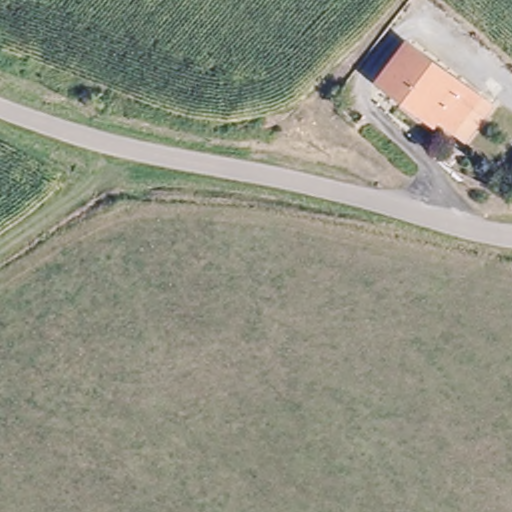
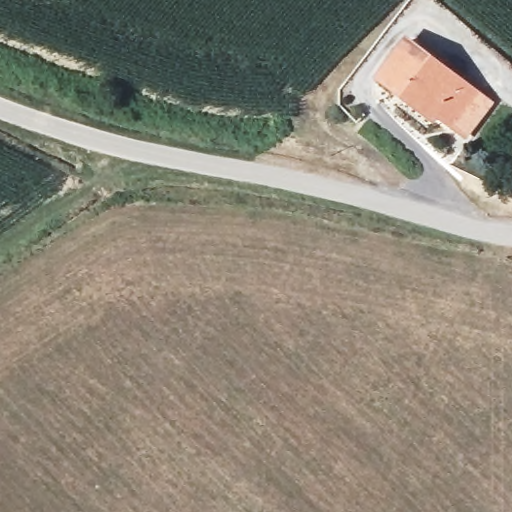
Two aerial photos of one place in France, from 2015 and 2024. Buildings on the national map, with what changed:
unchanged [(464,130),(451,120),(444,114),(435,126),(383,81),(416,36),(476,86),(491,98),(464,130)]

